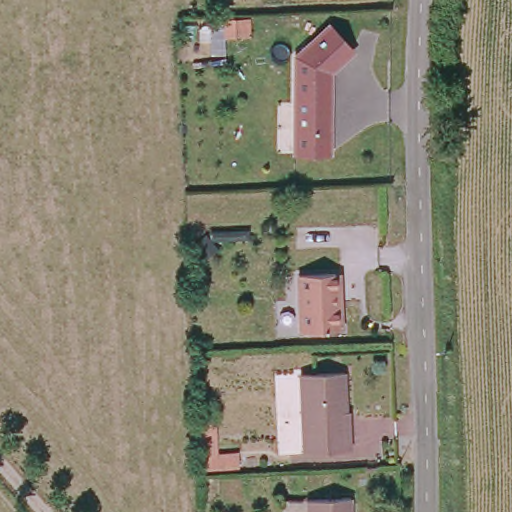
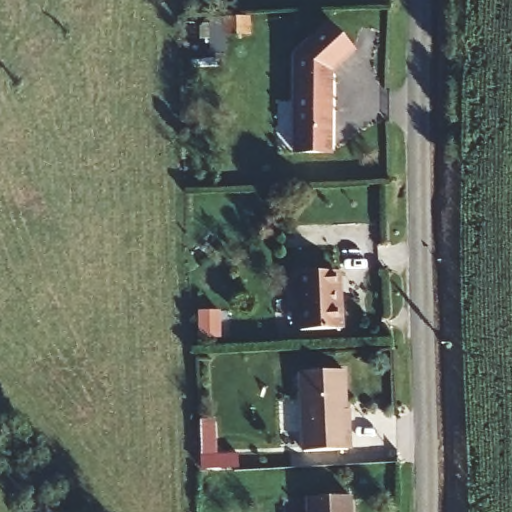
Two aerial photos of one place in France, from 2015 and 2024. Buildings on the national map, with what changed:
unchanged [(327,22),(347,44),(330,68),(328,150),(293,149),(292,51),(327,22)]
unchanged [(260,35),(260,51),(235,52),(235,36),(260,35)]
unchanged [(337,269),(338,298),(344,298),(345,327),(301,327),(300,271),(337,269)]
unchanged [(347,369),(348,412),(349,449),(301,451),(300,370),(347,369)]
unchanged [(355,499),(356,512),(309,512),(308,500),(355,499)]

